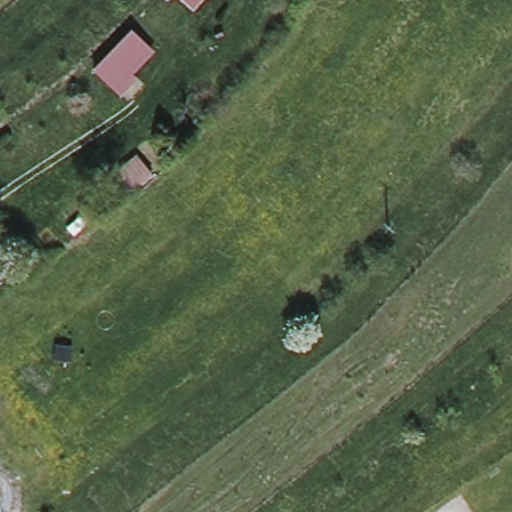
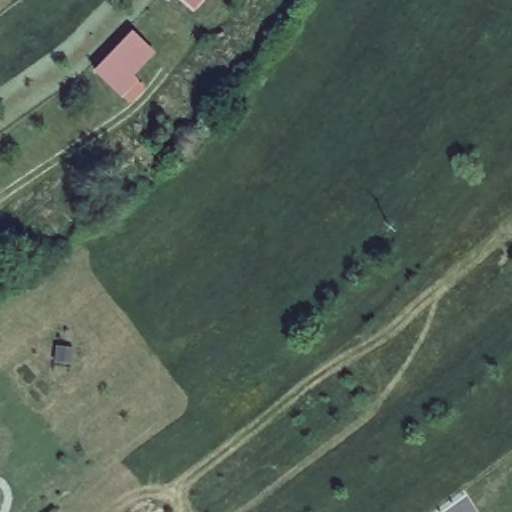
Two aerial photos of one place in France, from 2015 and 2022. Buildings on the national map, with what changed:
unchanged [(155,53),(132,77),(138,83),(124,96),(97,68),(134,32),(155,53)]
unchanged [(248,88),(220,120),(199,101),(230,71),(248,88)]
unchanged [(150,186),(125,203),(111,183),(136,166),(150,186)]

